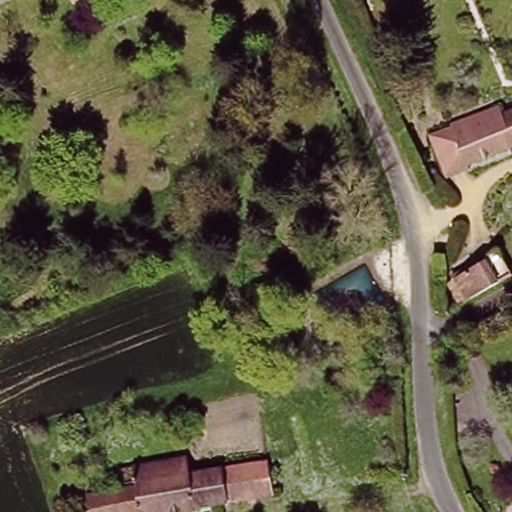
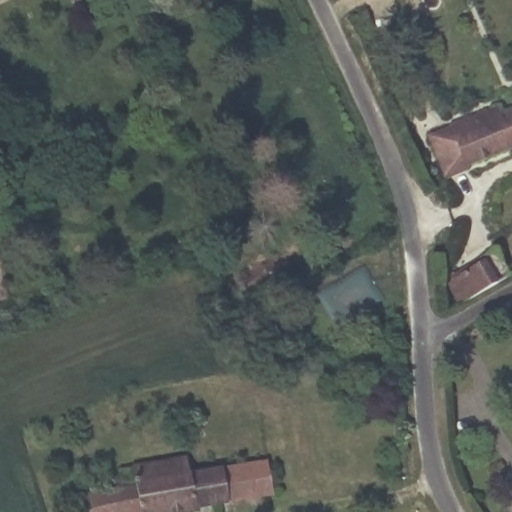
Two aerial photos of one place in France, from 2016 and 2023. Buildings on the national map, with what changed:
unchanged [(500,104),(505,116),(512,113),(512,148),(471,162),(473,168),(451,177),(435,133),(455,126),(452,121),(500,104)]
unchanged [(484,263),(481,256),(496,249),(511,279),(465,302),(452,280),(484,263)]
unchanged [(65,494),(112,485),(115,498),(122,496),(118,475),(185,463),(189,481),(266,468),(272,505),(240,510),(240,512),(69,512),(65,494)]

